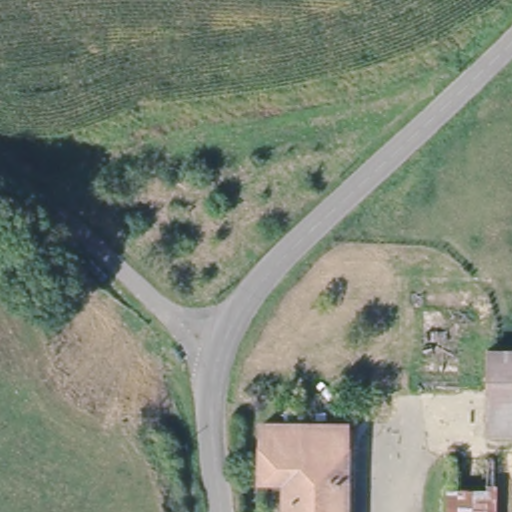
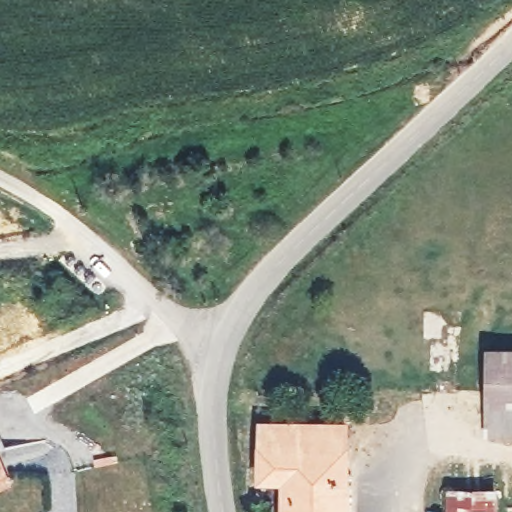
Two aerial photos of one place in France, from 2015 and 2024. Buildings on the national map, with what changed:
unchanged [(512,346),(512,423),(486,423),(488,345),(512,346)]
unchanged [(351,427),(350,512),(292,512),(294,472),(271,472),(273,425),(351,427)]
new [(0,488),(0,451),(13,483),(0,488)]
unchanged [(496,489),(496,512),(445,512),(445,489),(496,489)]

